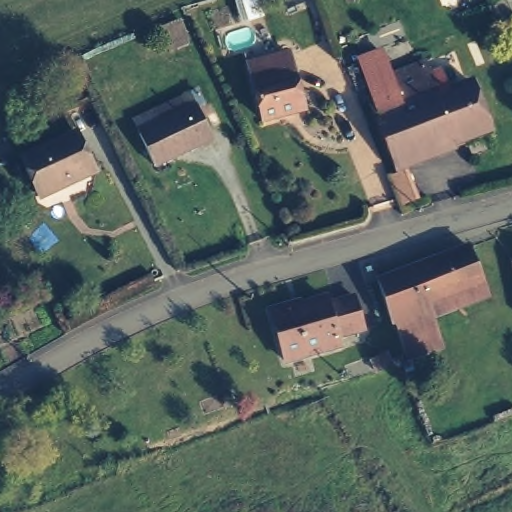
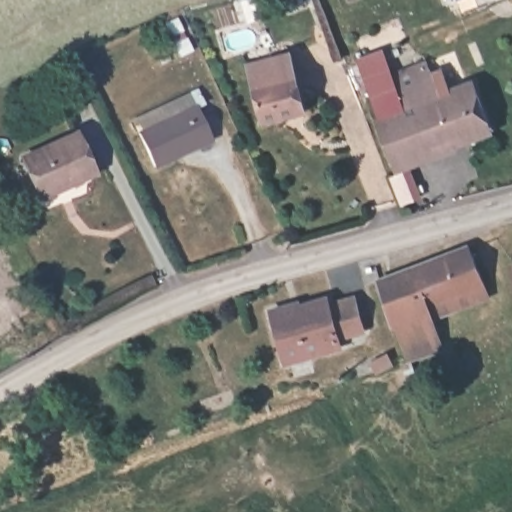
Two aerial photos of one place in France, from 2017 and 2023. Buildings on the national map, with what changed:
unchanged [(497,135),(398,165),(370,100),(355,59),(385,47),(391,77),(425,65),(437,92),(450,87),(455,94),(480,85),(497,135)]
unchanged [(301,112),(260,120),(246,65),(288,55),(301,112)]
unchanged [(211,137),(156,161),(140,126),(197,102),(211,137)]
unchanged [(60,186),(43,194),(22,151),(75,126),(92,162),(96,169),(60,186)]
unchanged [(457,312),(445,319),(440,307),(403,327),(390,296),(472,251),(485,288),(475,293),(455,303),(457,312)]
unchanged [(512,253),(512,262),(510,254),(512,253)]
unchanged [(327,308),(350,297),(359,327),(336,338),(340,348),(280,361),(262,308),(285,306),(293,305),(296,312),(325,306),(327,308)]
unchanged [(403,327),(440,307),(445,319),(455,343),(420,360),(416,362),(403,327)]

